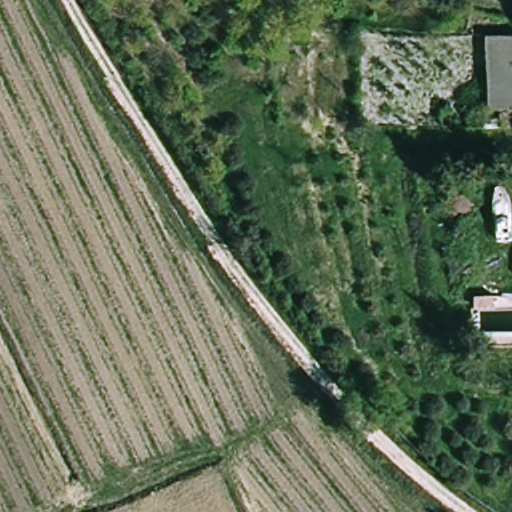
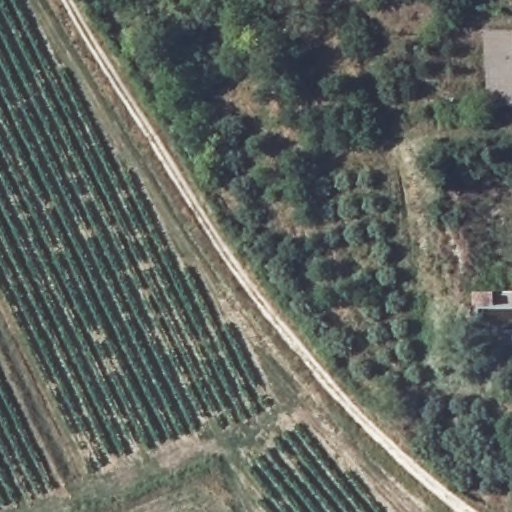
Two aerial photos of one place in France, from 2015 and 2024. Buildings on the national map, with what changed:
unchanged [(483,125),(485,49),(512,49),(512,125),(483,125)]

